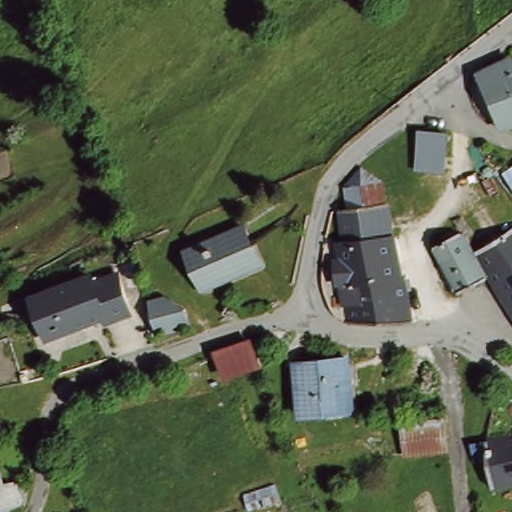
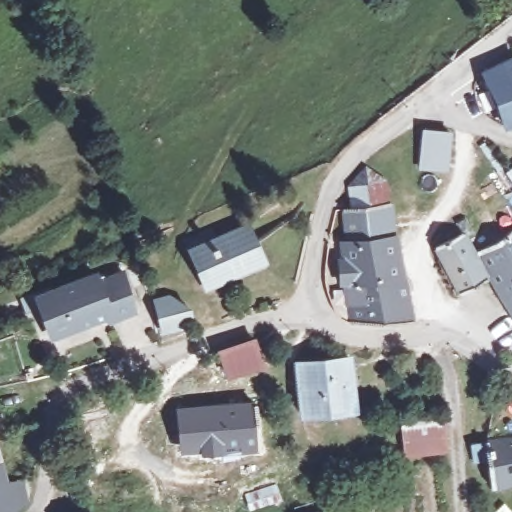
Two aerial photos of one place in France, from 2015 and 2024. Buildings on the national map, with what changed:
unchanged [(502,127),(490,97),(480,74),(512,59),(512,124),(502,127)]
unchanged [(422,162),(422,141),(450,144),(448,161),(448,165),(422,162)]
unchanged [(512,169),(512,183),(505,174),(512,169)]
unchanged [(347,176),(385,170),(390,196),(350,200),(347,176)]
unchanged [(392,313),(352,314),(341,236),(333,236),(334,224),(344,223),(343,201),(350,200),(390,196),(394,229),(398,229),(413,312),(392,313)]
unchanged [(497,285),(476,250),(512,224),(512,308),(497,285)]
unchanged [(253,225),(268,263),(214,286),(197,248),(253,225)]
unchanged [(467,234),(472,251),(478,265),(485,280),(463,288),(444,243),(467,234)]
unchanged [(92,279),(95,283),(120,275),(135,314),(110,323),(107,318),(52,335),(38,295),(92,279)]
unchanged [(168,290),(187,302),(193,320),(163,326),(155,292),(168,290)]
unchanged [(233,376),(225,351),(260,340),(267,363),(233,376)]
unchanged [(352,358),(360,408),(309,414),(303,363),(352,358)]
new [(240,446),(225,447),(225,453),(202,455),(201,451),(180,453),(176,406),(255,400),(260,452),(242,453),(240,446)]
unchanged [(408,425),(447,421),(450,451),(411,455),(408,425)]
unchanged [(495,486),(491,456),(475,458),(475,443),(490,440),(512,437),(512,481),(495,486)]
unchanged [(22,475),(27,495),(10,499),(10,502),(0,505),(0,470),(2,480),(22,475)]

